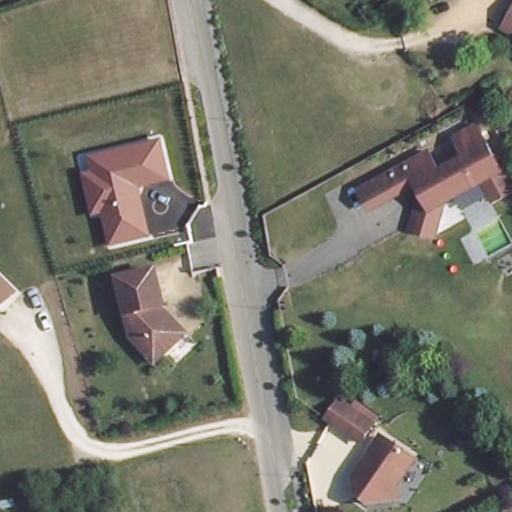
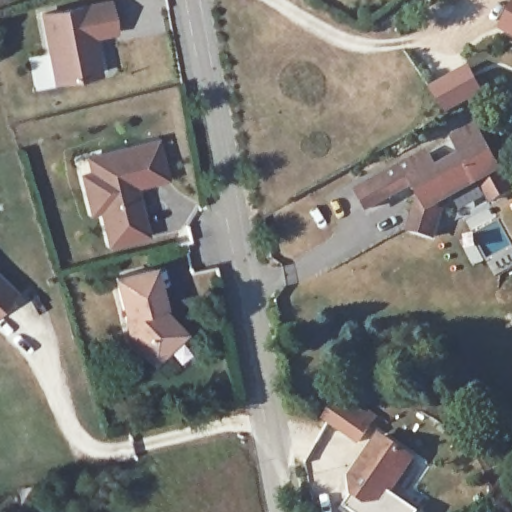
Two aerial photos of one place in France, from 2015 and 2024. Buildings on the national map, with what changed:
new [(52,85),(38,12),(101,0),(111,0),(117,35),(95,39),(102,75),(52,85)]
unchanged [(505,24),(512,7),(512,27),(505,24)]
unchanged [(360,194),(389,178),(433,154),(443,171),(469,156),(460,139),(472,132),(482,126),(500,159),(512,181),(512,194),(497,201),(486,181),(450,201),(436,239),(413,230),(427,194),(421,184),(399,196),(370,212),(360,194)]
unchanged [(168,181),(133,190),(135,201),(140,200),(148,237),(112,245),(104,212),(94,214),(86,177),(112,171),(109,156),(160,145),(168,181)]
unchanged [(138,345),(132,337),(117,277),(155,268),(164,306),(160,307),(161,315),(167,313),(185,333),(162,355),(155,362),(138,345)]
unchanged [(0,307),(0,279),(13,293),(0,307)]
unchanged [(361,440),(327,418),(340,400),(372,422),(361,440)]
unchanged [(385,498),(365,503),(350,495),(346,475),(377,432),(412,455),(394,482),(400,495),(385,498)]

